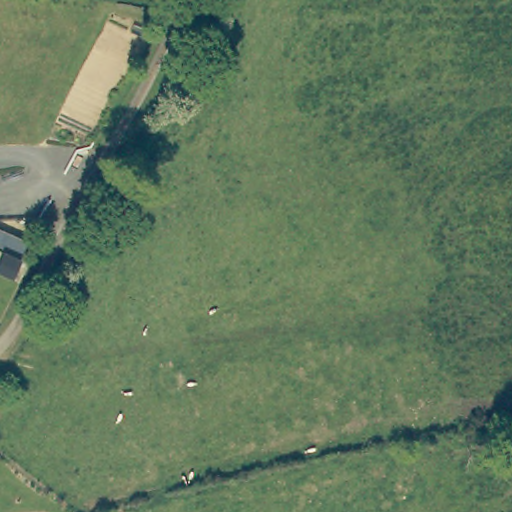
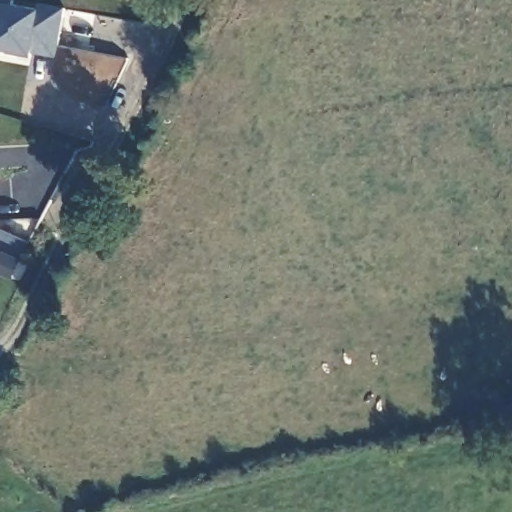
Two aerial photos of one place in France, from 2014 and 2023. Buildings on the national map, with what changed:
new [(9,7),(36,12),(37,5),(63,9),(55,56),(31,51),(30,56),(7,51),(7,50),(0,48),(0,0),(11,0),(9,7)]

